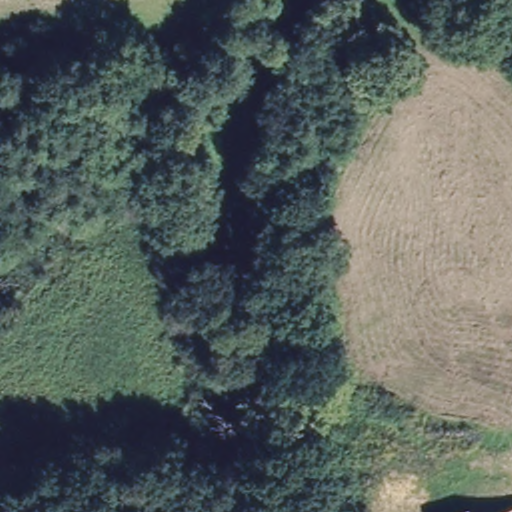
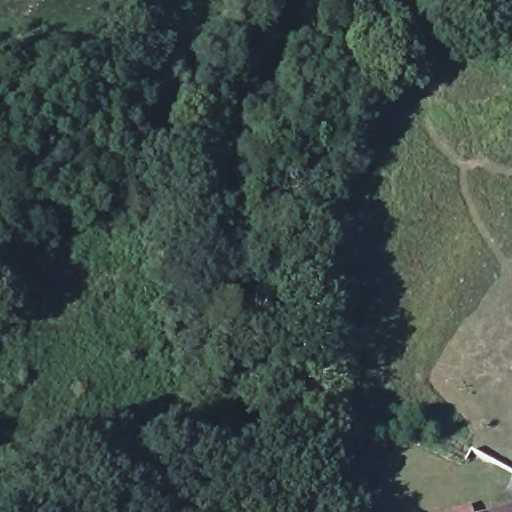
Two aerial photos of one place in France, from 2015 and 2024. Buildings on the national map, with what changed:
unchanged [(471,512),(447,512),(468,503),(471,512)]
unchanged [(491,512),(512,504),(512,512),(491,512)]

